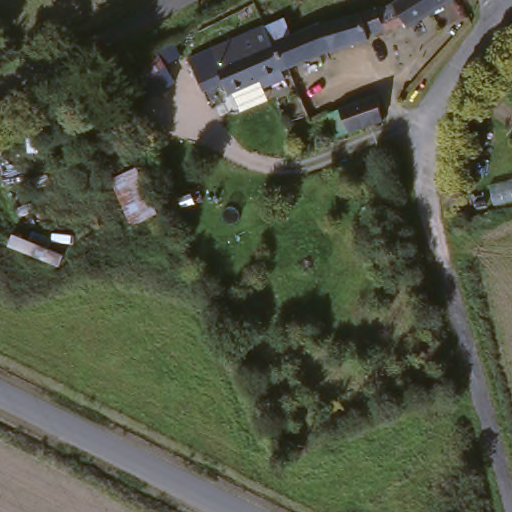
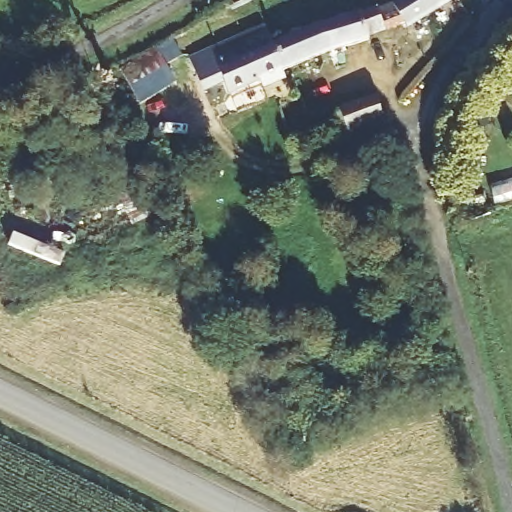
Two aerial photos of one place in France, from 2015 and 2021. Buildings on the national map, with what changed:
unchanged [(366,22),(382,14),(379,6),(390,1),(392,0),(440,0),(442,3),(390,30),(388,26),(371,34),(372,36),(280,74),(283,81),(265,89),(262,90),(259,83),(227,97),(216,71),(219,70),(212,50),(248,35),(264,29),(272,47),(362,13),(366,22)]
unchanged [(326,118),(373,101),(380,117),(382,126),(336,144),(326,118)]
unchanged [(126,231),(107,185),(134,173),(154,220),(126,231)]

